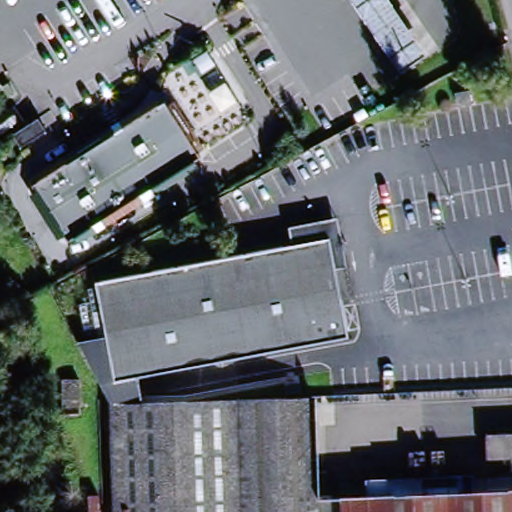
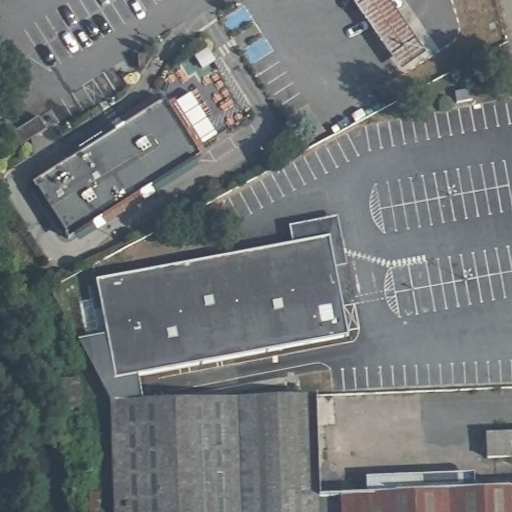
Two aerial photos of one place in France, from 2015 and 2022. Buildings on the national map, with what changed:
unchanged [(398,72),(349,0),(387,0),(424,55),(398,72)]
unchanged [(156,105),(164,101),(200,161),(66,245),(30,185),(37,181),(32,173),(152,100),(156,105)]
unchanged [(340,337),(108,380),(90,281),(323,239),(340,337)]
unchanged [(69,404),(68,378),(82,378),(83,403),(69,404)]
unchanged [(307,398),(311,512),(236,512),(234,401),(307,398)]
unchanged [(109,404),(227,402),(234,401),(236,512),(111,512),(109,404)]
unchanged [(486,435),(512,434),(512,458),(487,458),(486,435)]
unchanged [(336,496),(512,490),(512,512),(336,512),(336,496)]
unchanged [(98,512),(89,512),(87,498),(97,497),(98,512)]

